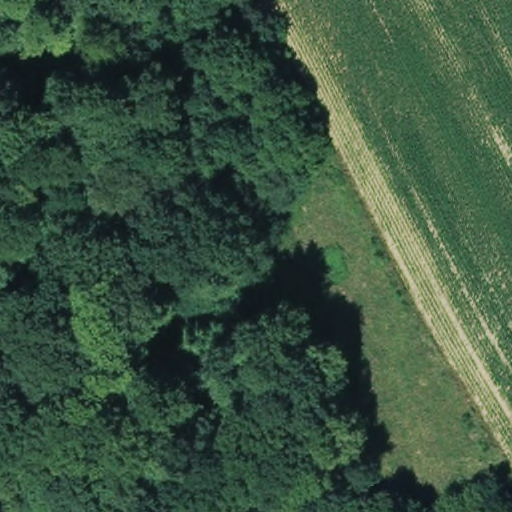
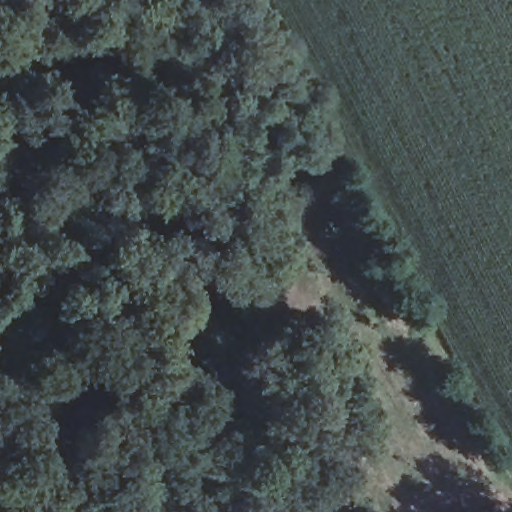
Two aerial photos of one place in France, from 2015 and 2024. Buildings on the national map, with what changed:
unchanged [(326,512),(312,512),(323,505),(326,512)]

